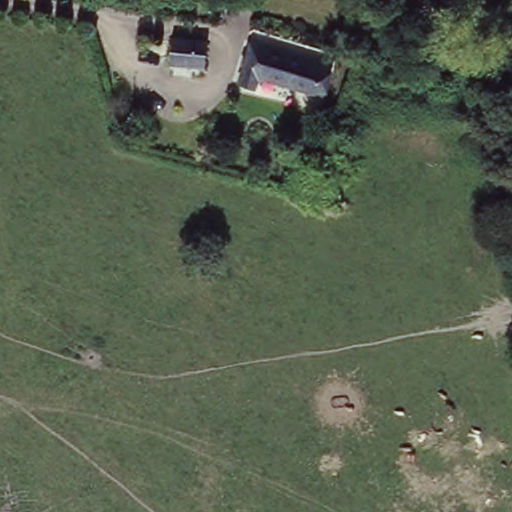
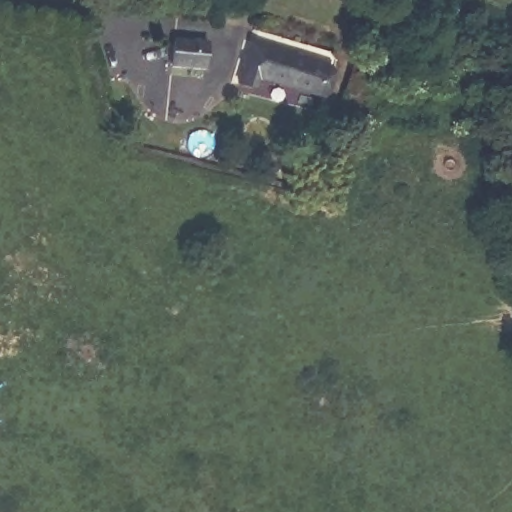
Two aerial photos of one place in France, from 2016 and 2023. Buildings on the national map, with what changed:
unchanged [(203,42),(201,66),(165,64),(167,40),(203,42)]
unchanged [(328,64),(322,89),(257,72),(256,81),(239,78),(247,42),(328,64)]

